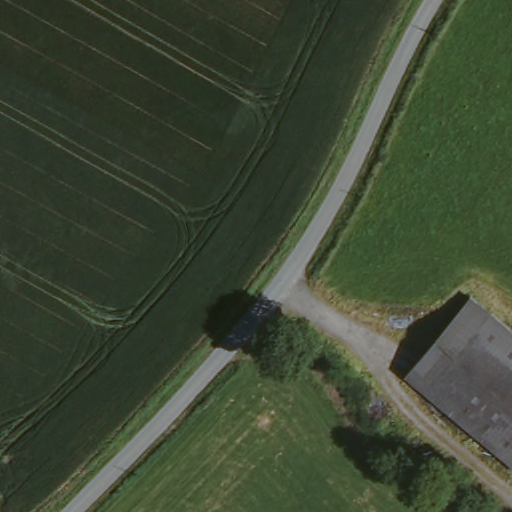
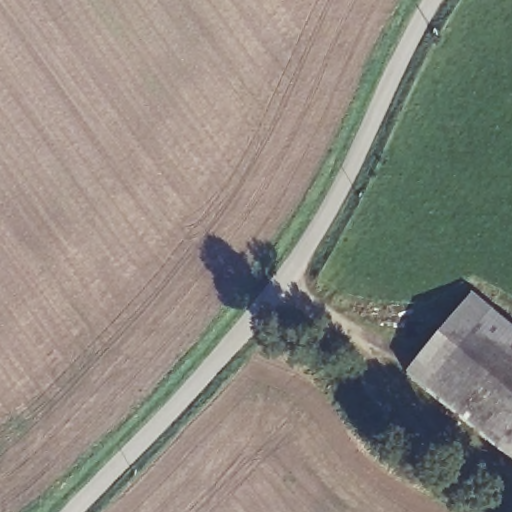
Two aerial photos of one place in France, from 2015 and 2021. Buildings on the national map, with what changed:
unchanged [(512,477),(398,381),(464,301),(512,340),(512,477)]

